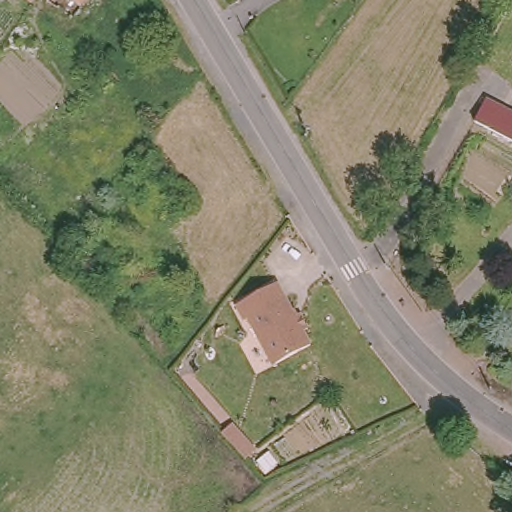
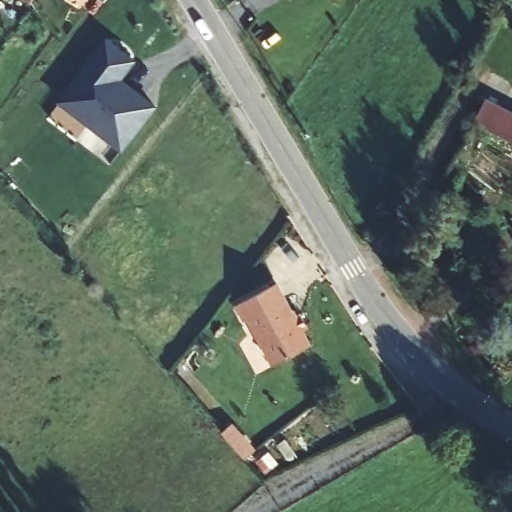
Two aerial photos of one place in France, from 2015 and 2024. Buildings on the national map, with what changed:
unchanged [(40,25),(26,0),(44,0),(47,5),(40,25)]
unchanged [(68,20),(52,4),(54,0),(90,0),(72,23),(68,20)]
new [(107,42),(134,64),(118,83),(134,96),(135,94),(154,109),(120,152),(58,103),(107,42)]
unchanged [(508,139),(475,122),(488,97),(512,112),(512,141),(508,139)]
unchanged [(274,385),(231,312),(287,277),(306,314),(314,309),(325,332),(319,337),(327,353),(274,385)]

